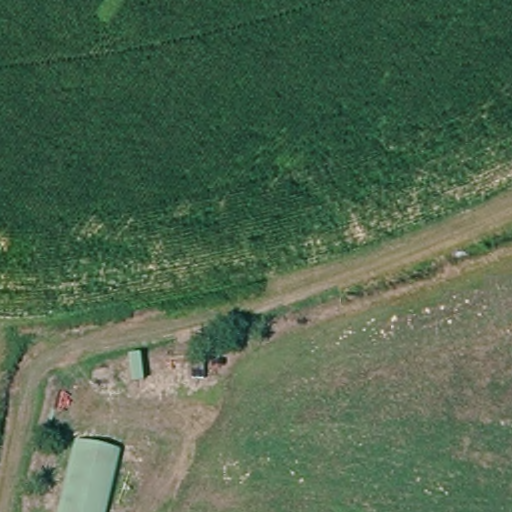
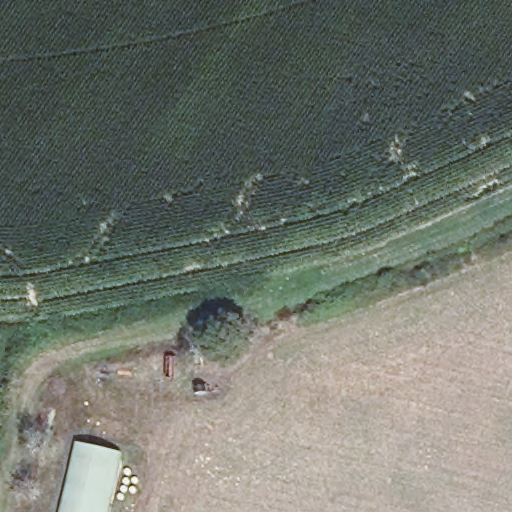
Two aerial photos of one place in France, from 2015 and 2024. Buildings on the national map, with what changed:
unchanged [(104,512),(61,512),(76,442),(118,451),(104,512)]

